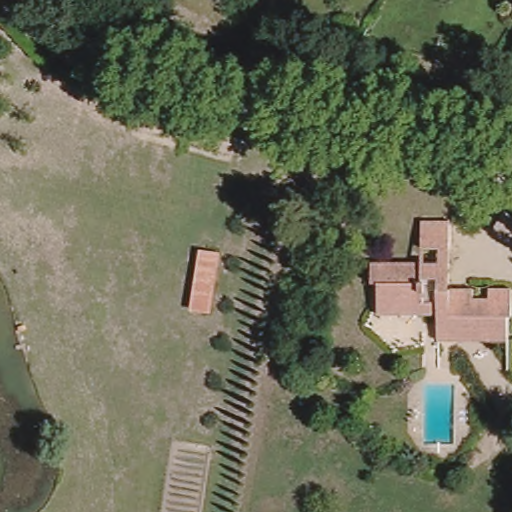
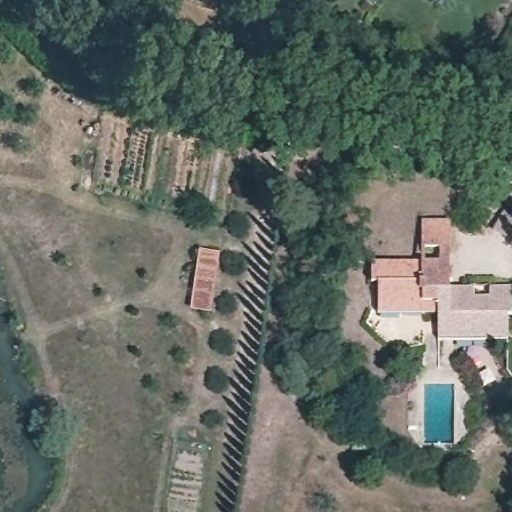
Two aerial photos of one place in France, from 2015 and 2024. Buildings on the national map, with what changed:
unchanged [(438,315),(379,315),(379,307),(379,283),(371,283),(371,263),(421,263),(439,263),(439,248),(422,248),(422,220),(450,221),(450,247),(450,289),(473,289),(473,298),(489,298),(489,288),(512,289),(512,315),(508,315),(507,341),(489,341),(438,342),(438,334),(438,315)]
unchanged [(196,250),(221,255),(210,316),(187,311),(196,250)]

